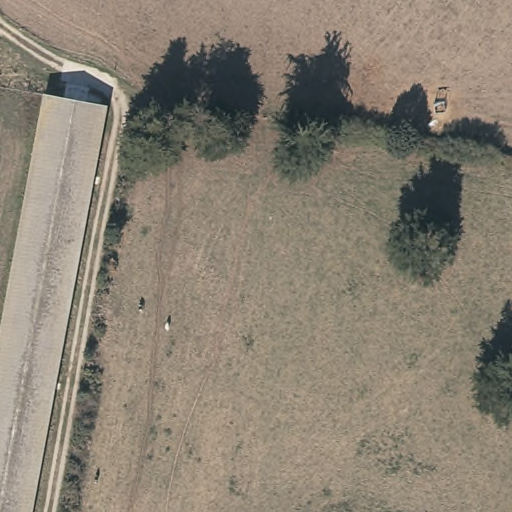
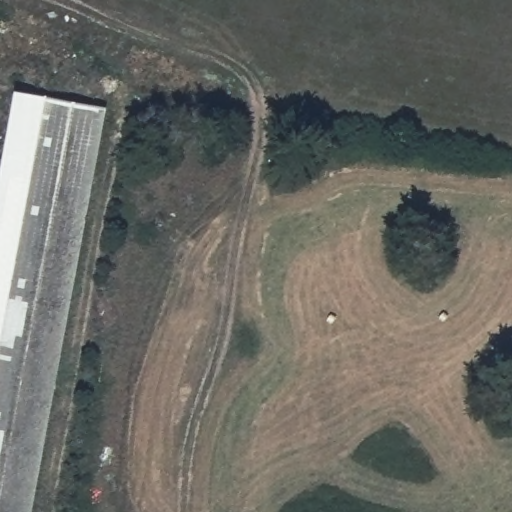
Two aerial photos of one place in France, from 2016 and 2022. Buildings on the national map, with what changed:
new [(46,95),(0,350),(0,169),(15,89),(46,95)]
unchanged [(52,377),(26,512),(0,512),(0,350),(47,92),(103,104),(52,377)]

